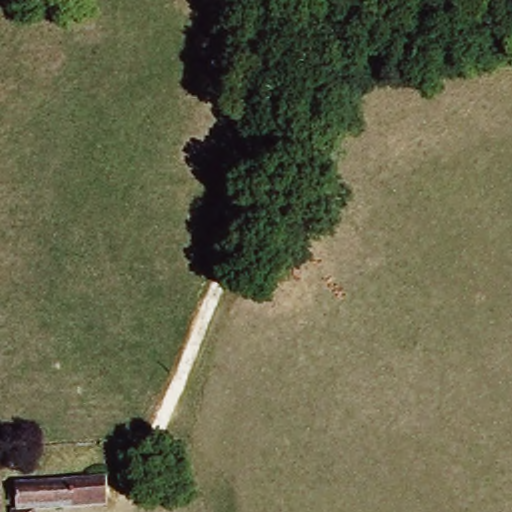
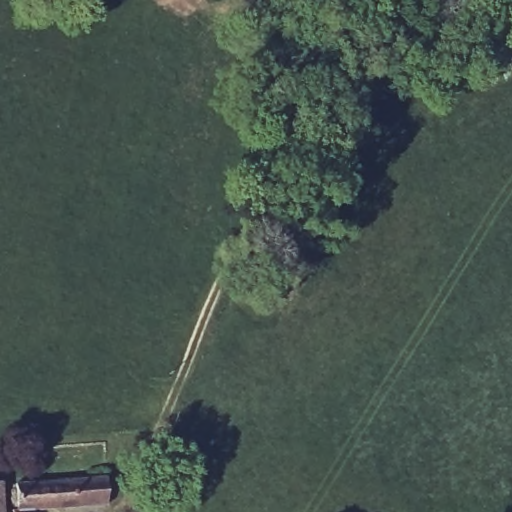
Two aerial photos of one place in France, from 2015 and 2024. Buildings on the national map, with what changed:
unchanged [(26,482),(118,478),(119,506),(48,509),(49,512),(27,512),(26,482)]
unchanged [(8,485),(8,512),(0,512),(0,485),(8,485)]

